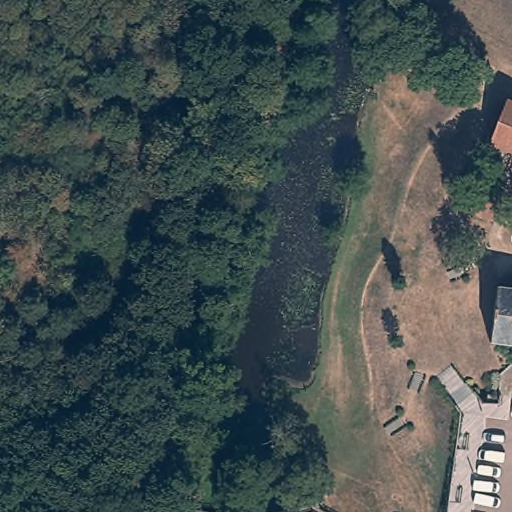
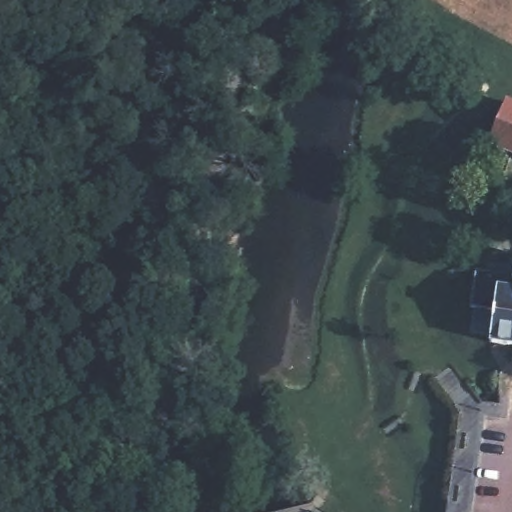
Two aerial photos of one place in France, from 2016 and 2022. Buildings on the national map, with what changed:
unchanged [(492,145),(508,103),(512,104),(512,152),(492,145)]
unchanged [(490,220),(465,211),(476,183),(500,192),(490,220)]
unchanged [(490,343),(497,287),(512,289),(512,346),(490,343)]

